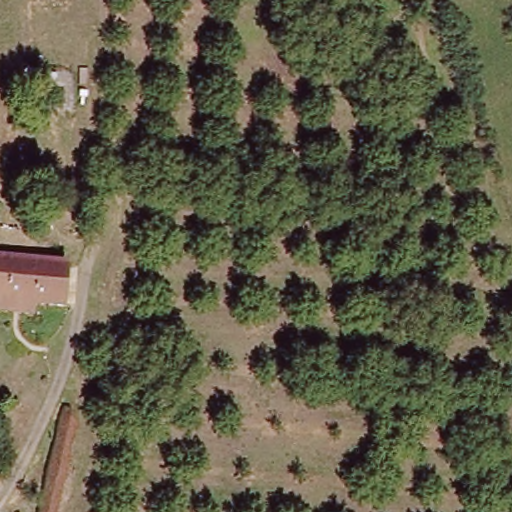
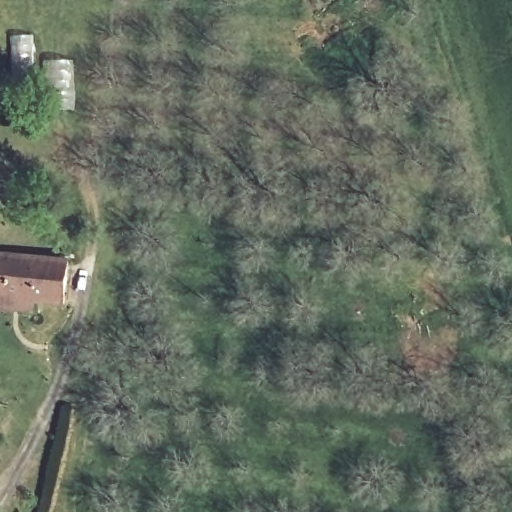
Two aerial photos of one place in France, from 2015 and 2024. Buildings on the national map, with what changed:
unchanged [(65,255),(60,309),(27,307),(0,305),(0,250),(65,255)]

